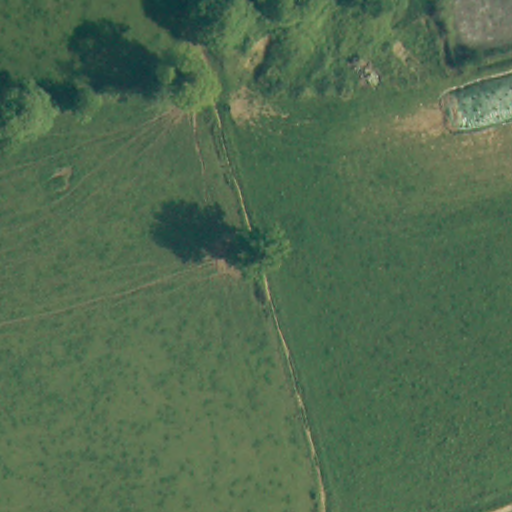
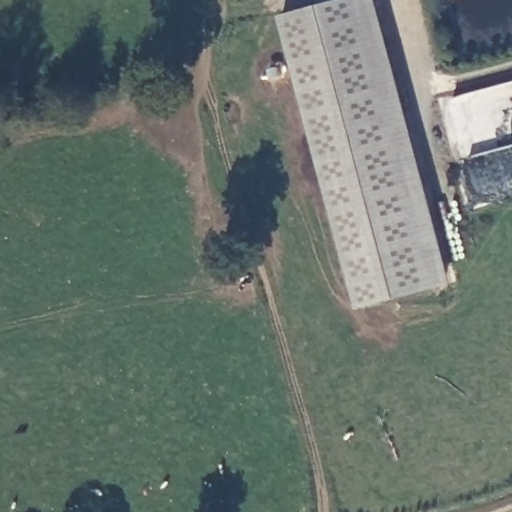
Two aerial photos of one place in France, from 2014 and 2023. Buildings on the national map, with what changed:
new [(335,0),(380,0),(456,282),(361,309),(281,15),(335,0)]

